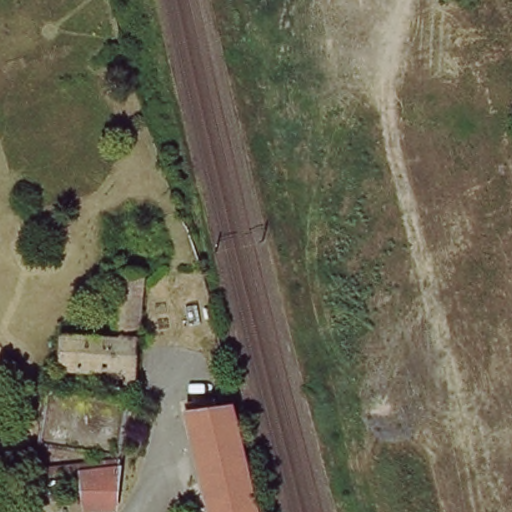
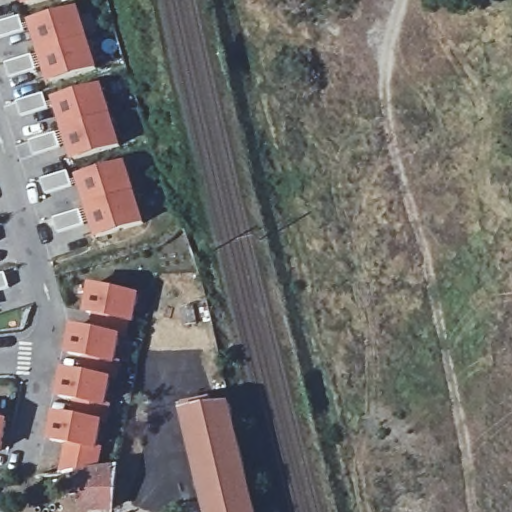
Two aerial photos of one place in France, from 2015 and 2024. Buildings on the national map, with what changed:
new [(25,0),(34,0),(26,2),(25,0)]
new [(41,50),(32,21),(76,8),(85,37),(41,50)]
new [(50,80),(41,50),(85,37),(94,66),(50,80)]
new [(65,128),(56,99),(100,85),(109,115),(65,128)]
new [(74,158),(65,128),(109,115),(118,144),(74,158)]
new [(124,163),(133,192),(88,206),(79,177),(124,163)]
new [(133,192),(142,222),(97,235),(88,206),(133,192)]
demolished [(129,385),(92,383),(92,366),(58,364),(60,330),(109,333),(117,270),(141,273),(129,385)]
new [(81,487),(34,494),(32,482),(57,479),(62,444),(43,440),(65,321),(77,325),(87,280),(134,291),(125,336),(116,335),(113,359),(122,362),(117,382),(107,380),(102,400),(113,405),(108,428),(97,426),(94,446),(103,447),(101,473),(112,471),(115,471),(114,481),(111,512),(85,512),(81,487)]
unchanged [(183,403),(209,396),(212,406),(234,400),(250,474),(258,512),(207,512),(183,403)]
new [(5,417),(0,445),(0,417),(5,417)]
demolished [(114,481),(111,512),(85,512),(81,487),(114,481)]

